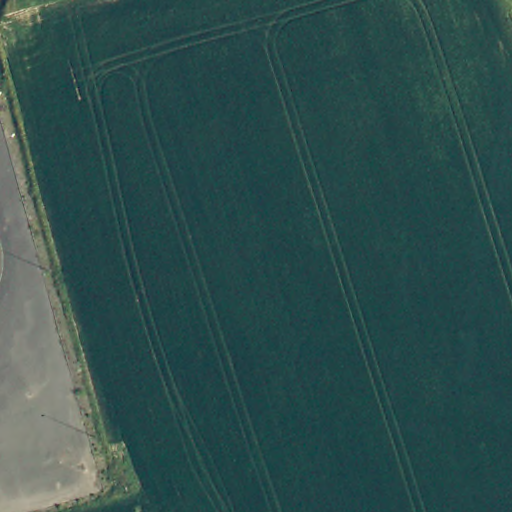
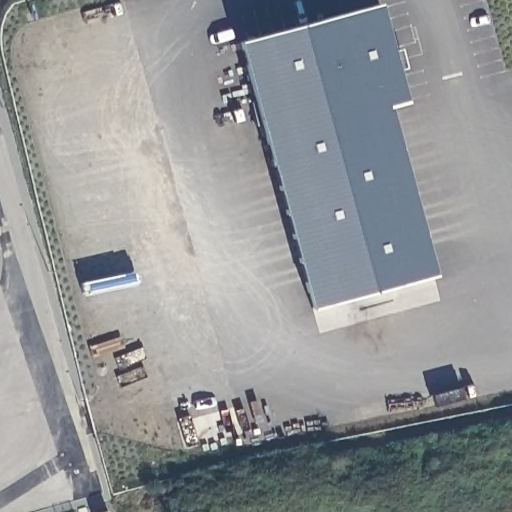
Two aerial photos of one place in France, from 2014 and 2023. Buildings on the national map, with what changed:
new [(381,3),(393,51),(402,49),(408,69),(399,71),(408,102),(391,107),(436,276),(311,309),(239,42),(381,3)]

